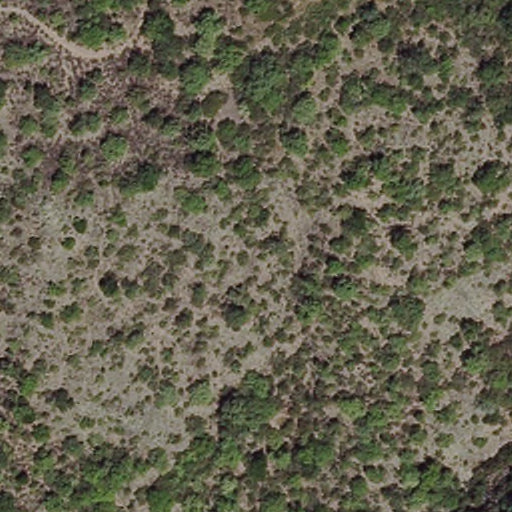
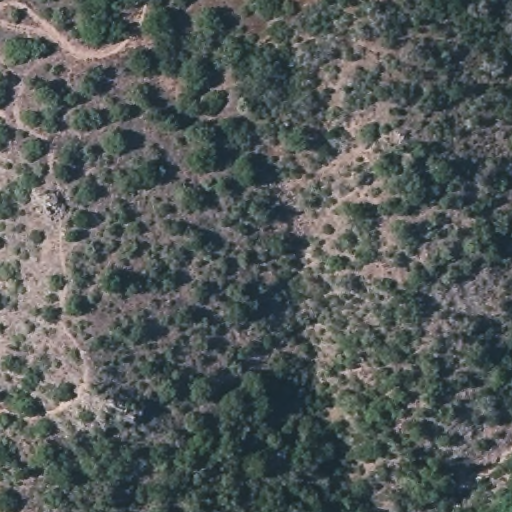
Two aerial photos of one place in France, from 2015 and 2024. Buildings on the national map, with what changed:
[]

